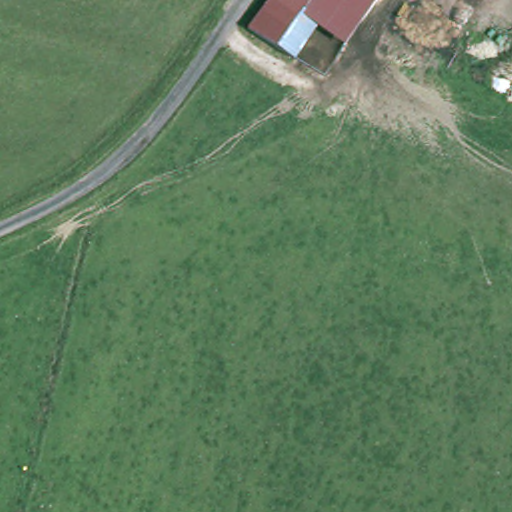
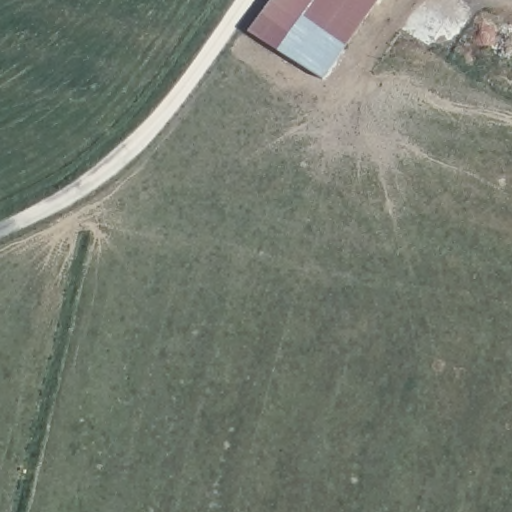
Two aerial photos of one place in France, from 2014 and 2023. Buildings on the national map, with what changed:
unchanged [(316,29),(292,62),(250,30),(271,0),(377,0),(343,47),(316,29)]

